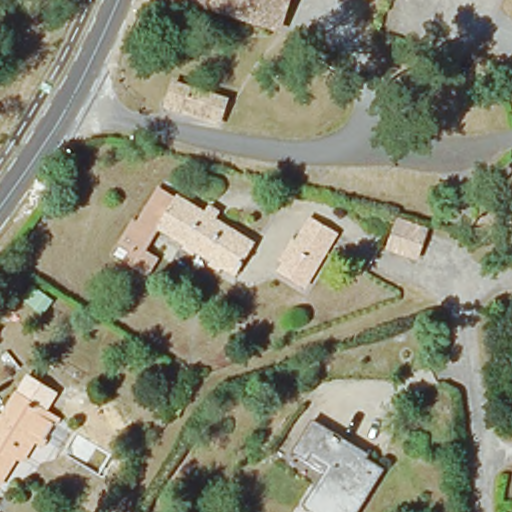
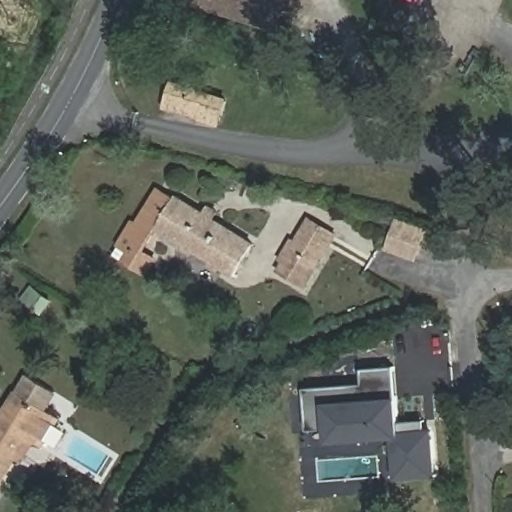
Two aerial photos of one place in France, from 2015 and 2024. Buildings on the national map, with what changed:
unchanged [(192,0),(286,0),(278,27),(192,0)]
unchanged [(217,122),(166,106),(173,83),(225,99),(217,122)]
unchanged [(238,271),(162,225),(146,251),(159,258),(151,272),(129,258),(134,250),(125,244),(137,222),(141,225),(163,190),(178,199),(179,197),(255,243),(238,271)]
unchanged [(304,283),(278,268),(308,219),(333,235),(304,283)]
unchanged [(397,220),(425,229),(415,260),(386,250),(397,220)]
new [(328,443),(327,429),(307,430),(304,387),(363,383),(362,368),(396,365),(398,396),(400,396),(402,421),(426,420),(426,428),(434,428),(437,476),(396,480),(392,438),(328,443)]
unchanged [(41,411),(60,423),(56,431),(51,428),(41,445),(45,447),(40,456),(30,450),(18,468),(9,463),(0,478),(0,420),(16,395),(41,411)]
demolished [(307,508),(328,473),(296,453),(312,427),(365,460),(363,463),(380,474),(355,512),(312,512),(307,508)]

